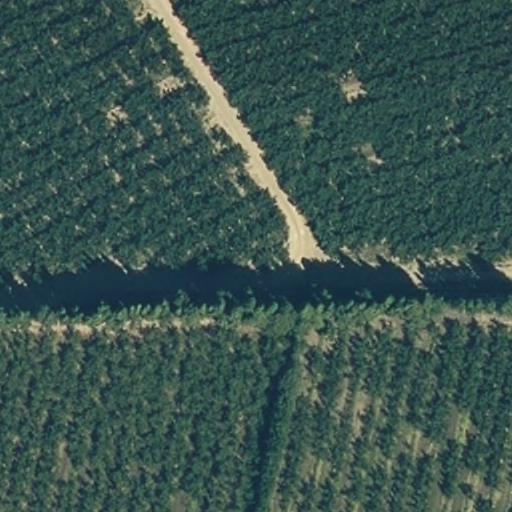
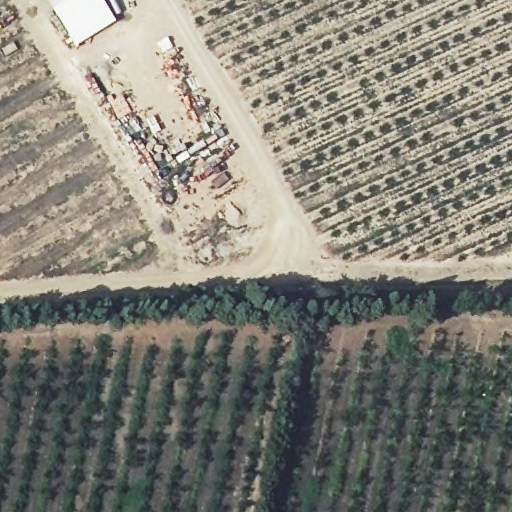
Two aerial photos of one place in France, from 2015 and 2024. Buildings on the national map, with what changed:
new [(102,0),(116,21),(76,47),(52,7),(64,0),(102,0)]

